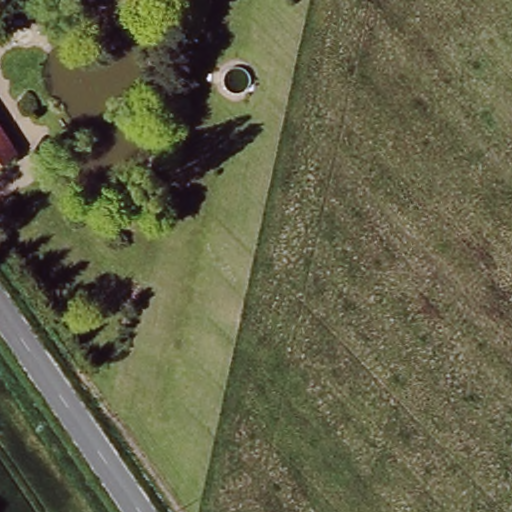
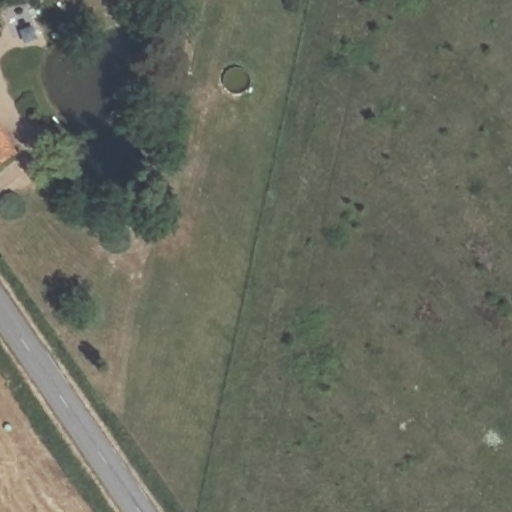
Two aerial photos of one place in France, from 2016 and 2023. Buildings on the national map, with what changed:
unchanged [(26,170),(0,188),(0,131),(26,170)]

